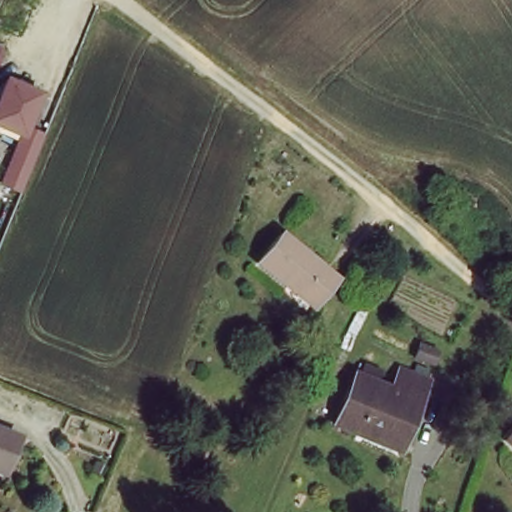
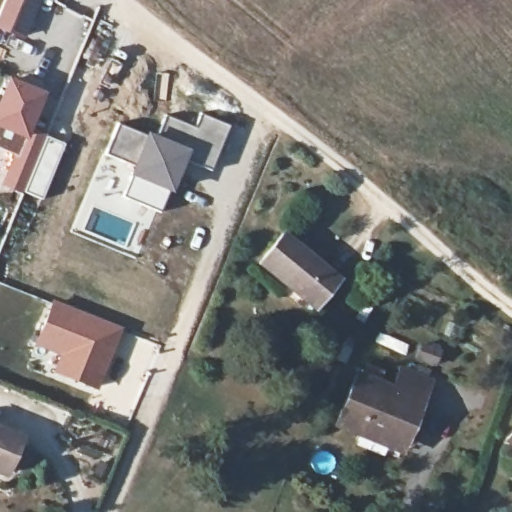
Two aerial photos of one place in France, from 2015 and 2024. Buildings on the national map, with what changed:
new [(0,30),(0,10),(4,0),(40,0),(23,40),(0,30)]
unchanged [(48,94),(30,134),(42,139),(22,192),(0,184),(17,139),(0,132),(0,98),(8,78),(48,94)]
new [(127,190),(137,167),(139,160),(129,156),(109,148),(118,127),(155,143),(166,119),(195,131),(201,118),(230,130),(215,165),(186,154),(164,207),(127,190)]
unchanged [(344,281),(322,308),(293,283),(287,290),(262,268),(289,233),(344,281)]
new [(52,299),(124,327),(99,391),(52,372),(57,355),(33,345),(52,299)]
unchanged [(422,364),(427,349),(445,357),(440,369),(422,364)]
unchanged [(356,434),(334,424),(358,369),(395,388),(402,372),(433,386),(408,442),(403,456),(356,434)]
unchanged [(25,437),(8,479),(0,476),(0,427),(25,437)]
unchanged [(512,436),(512,449),(505,444),(512,436)]

